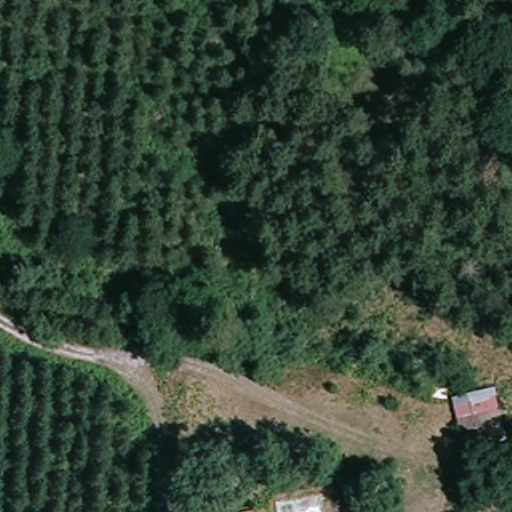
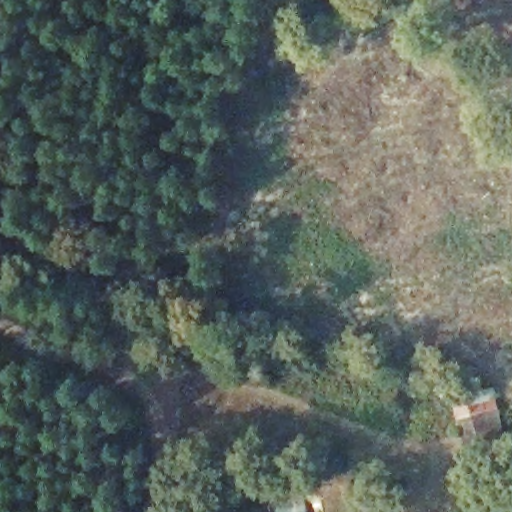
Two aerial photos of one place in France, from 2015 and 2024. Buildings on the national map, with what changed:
unchanged [(459,408),(484,401),(488,400),(495,399),(495,401),(502,431),(490,435),(467,440),(459,408)]
unchanged [(269,509),(269,512),(245,512),(245,511),(269,509)]

